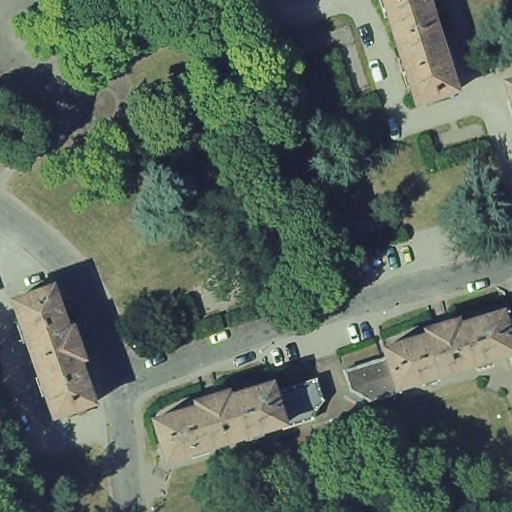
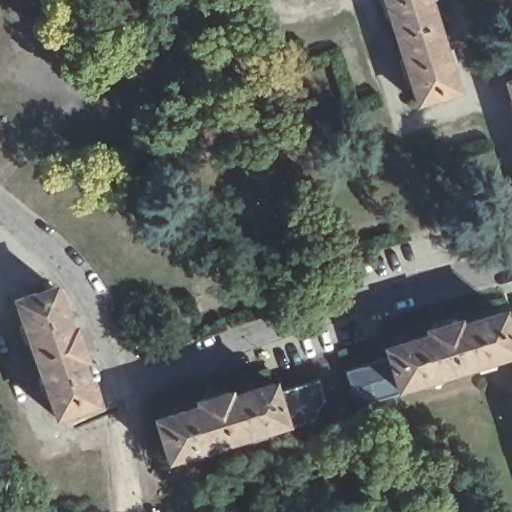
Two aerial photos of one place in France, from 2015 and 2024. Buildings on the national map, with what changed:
unchanged [(428,0),(444,49),(448,47),(453,63),(449,65),(457,89),(417,102),(384,0),(428,0)]
unchanged [(505,85),(512,82),(512,105),(505,85)]
unchanged [(14,296),(53,282),(68,325),(73,322),(83,355),(79,356),(93,398),(55,412),(14,296)]
unchanged [(401,387),(402,391),(370,401),(352,391),(345,370),(387,357),(385,348),(427,334),(425,330),(458,318),(460,324),(502,310),(505,318),(512,316),(512,352),(401,387)]
unchanged [(323,401),(313,419),(283,428),(282,425),(167,461),(154,421),(197,407),(195,402),(227,392),(230,397),(272,384),(275,392),(317,380),(323,401)]

